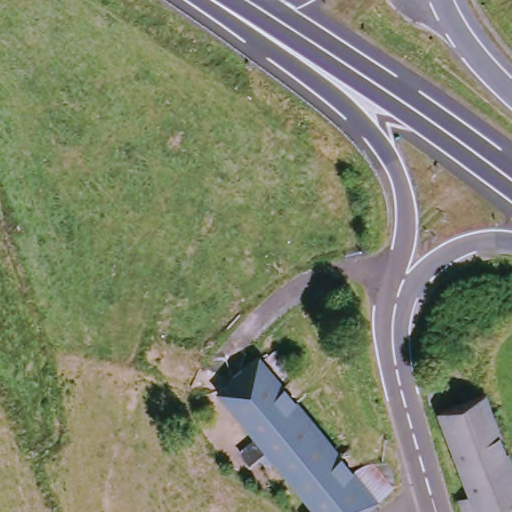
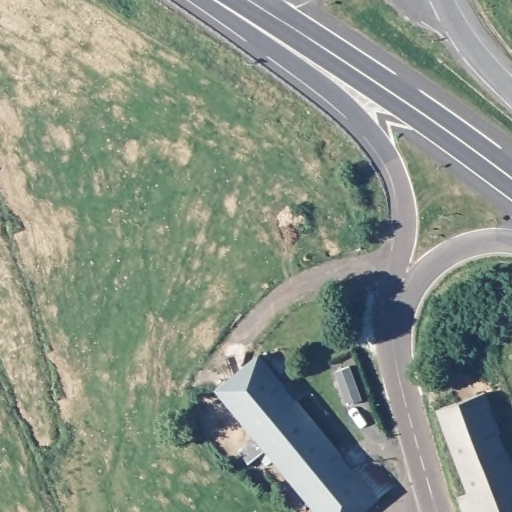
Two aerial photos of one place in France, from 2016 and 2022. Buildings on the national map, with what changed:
unchanged [(271,451),(256,465),(244,452),(260,438),(221,390),(264,353),(358,466),(377,460),(397,485),(366,512),(310,512),(316,506),(271,451)]
unchanged [(512,512),(471,512),(464,492),(474,489),(444,408),(489,393),(512,455),(512,512)]

